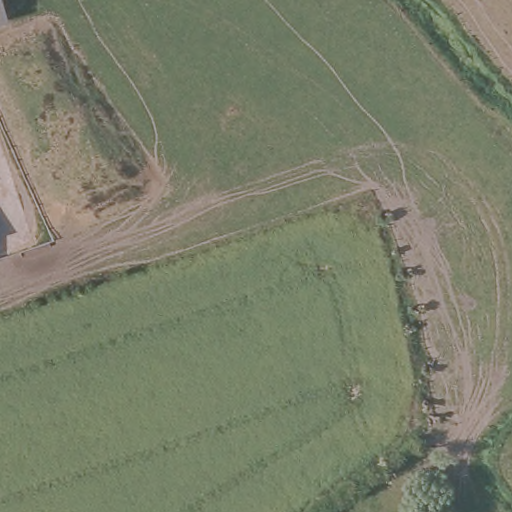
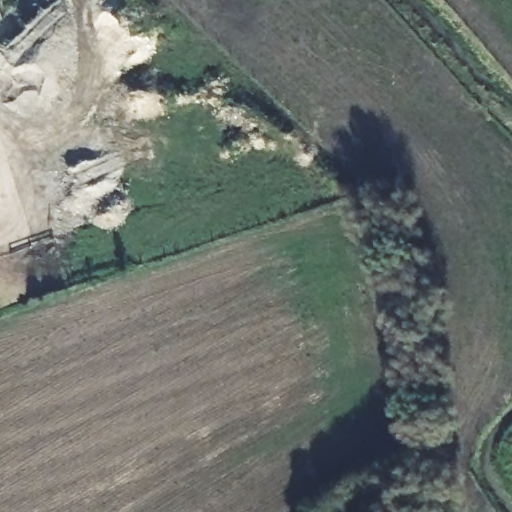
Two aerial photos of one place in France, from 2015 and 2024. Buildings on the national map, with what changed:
unchanged [(3,21),(0,22),(0,13),(3,21)]

